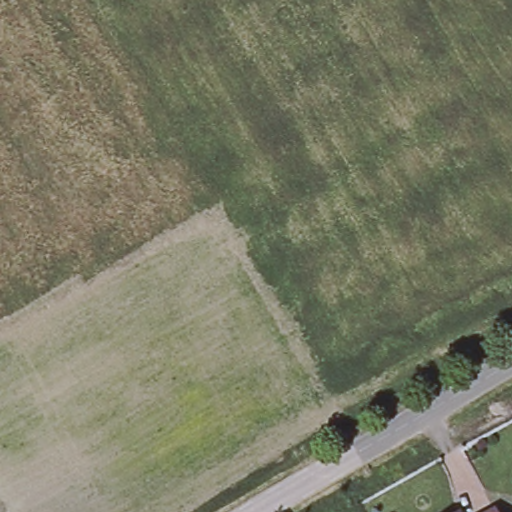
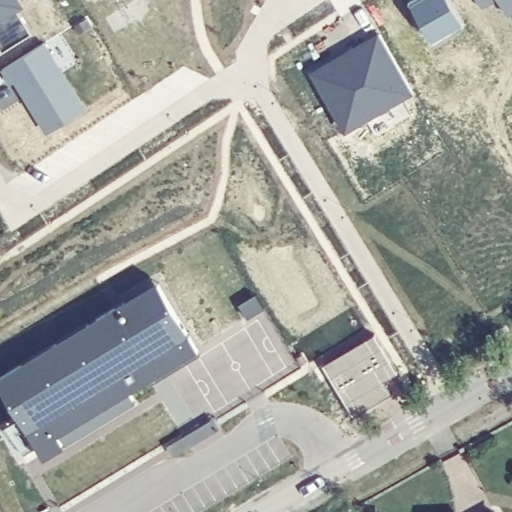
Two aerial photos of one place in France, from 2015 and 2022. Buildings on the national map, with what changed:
new [(22,10),(14,15),(29,36),(0,54),(0,53),(0,0),(17,0),(22,10)]
new [(424,0),(445,0),(463,30),(430,47),(409,9),(424,0)]
new [(509,17),(498,2),(482,11),(475,0),(512,0),(512,15),(509,17)]
new [(376,36),(413,97),(343,136),(306,76),(376,36)]
new [(43,45),(87,115),(45,137),(11,85),(6,89),(0,72),(43,45)]
new [(198,347),(128,389),(135,401),(65,444),(43,455),(0,382),(0,374),(157,279),(198,347)]
new [(375,340),(398,375),(383,386),(391,399),(353,418),(321,369),(375,340)]
demolished [(496,512),(491,512),(495,510),(496,512)]

